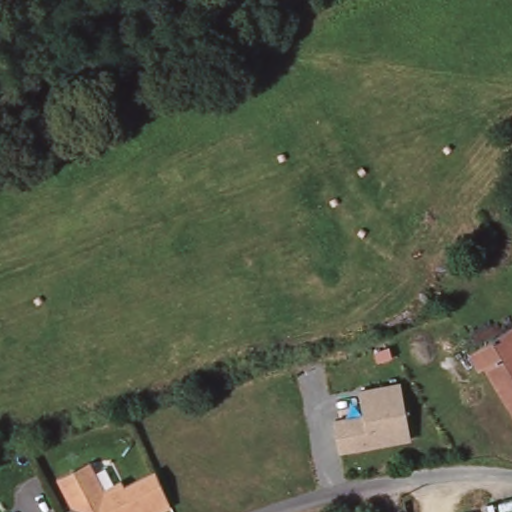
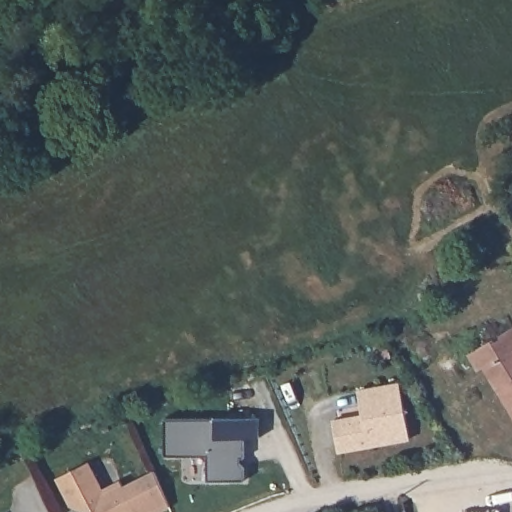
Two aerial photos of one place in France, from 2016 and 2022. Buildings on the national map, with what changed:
unchanged [(512,419),(480,365),(475,367),(466,352),(511,325),(512,327),(512,419)]
unchanged [(332,420),(364,414),(361,389),(402,383),(412,439),(337,453),(332,420)]
new [(165,418),(260,418),(260,438),(245,438),(245,458),(241,458),(241,464),(245,468),(245,481),(207,481),(208,456),(165,456),(165,418)]
unchanged [(99,488),(152,468),(166,508),(157,512),(89,512),(69,506),(54,476),(86,462),(99,488)]

